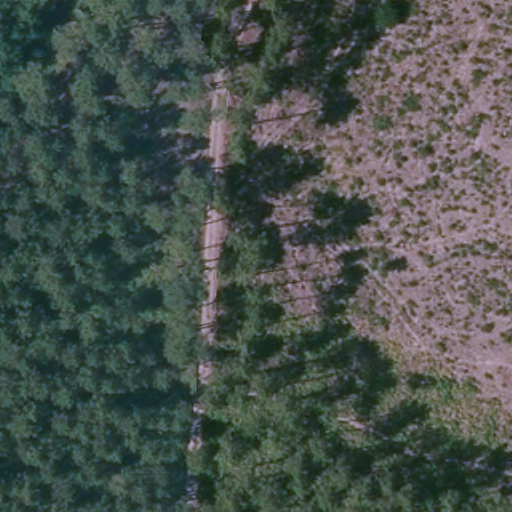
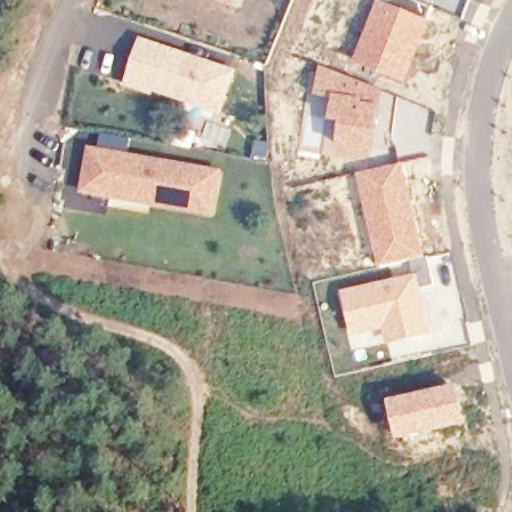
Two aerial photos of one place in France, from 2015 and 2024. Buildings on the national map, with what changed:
new [(211,0),(237,0),(234,7),(211,0)]
new [(380,0),(417,0),(434,7),(429,20),(404,85),(351,62),(377,0),(380,1),(380,0)]
new [(237,71),(222,117),(154,93),(152,97),(124,86),(141,37),(237,71)]
new [(317,65),(383,91),(371,156),(344,153),(344,150),(335,148),(339,123),(328,121),(331,99),(313,96),(317,65)]
new [(224,170),(217,217),(81,193),(88,146),(224,170)]
new [(403,163),(424,257),(374,267),(353,174),(403,163)]
new [(435,286),(422,289),(432,337),(388,348),(384,330),(353,337),(342,292),(414,275),(411,261),(429,257),(435,286)]
new [(456,386),(464,425),(397,442),(387,400),(456,386)]

